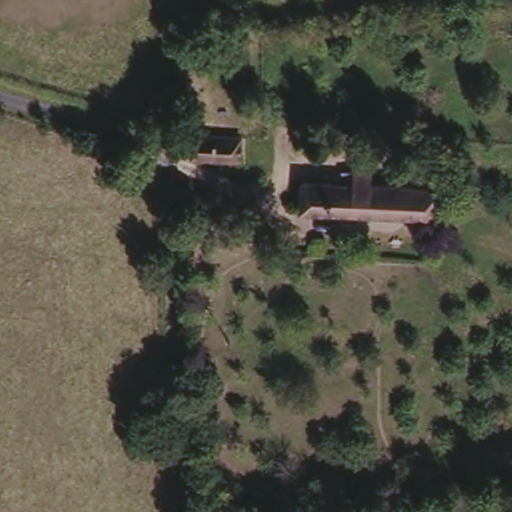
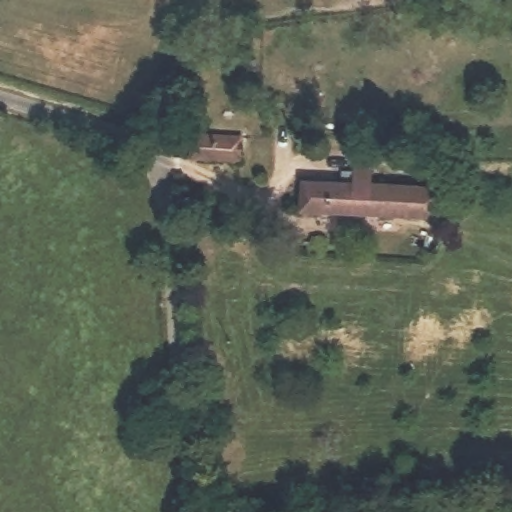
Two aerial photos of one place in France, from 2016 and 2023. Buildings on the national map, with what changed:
unchanged [(247,132),(247,165),(191,161),(192,130),(247,132)]
unchanged [(334,180),(335,168),(377,171),(377,183),(437,185),(435,224),(297,215),(298,176),(334,180)]

